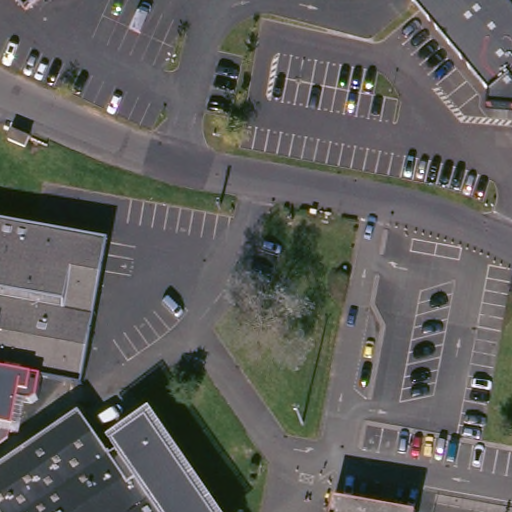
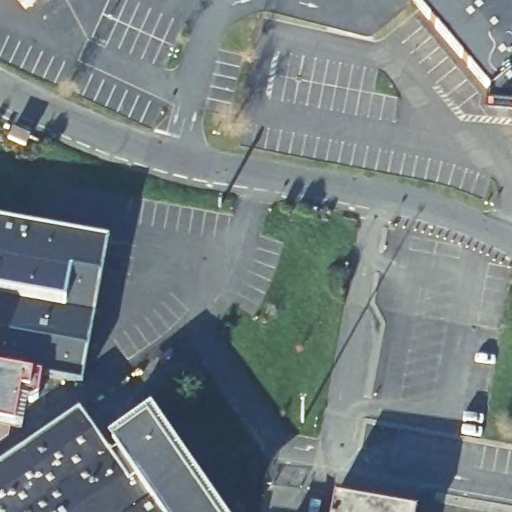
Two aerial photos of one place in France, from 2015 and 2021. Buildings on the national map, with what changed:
unchanged [(27,0),(34,0),(30,4),(27,0)]
unchanged [(489,89),(413,0),(512,0),(512,96),(499,81),(489,89)]
unchanged [(38,146),(34,156),(17,150),(21,139),(38,146)]
unchanged [(91,389),(35,378),(24,435),(0,430),(0,221),(118,243),(91,389)]
unchanged [(87,409),(116,452),(153,426),(169,452),(210,512),(0,512),(0,468),(87,409)]
unchanged [(341,496),(423,510),(422,512),(338,512),(341,496)]

